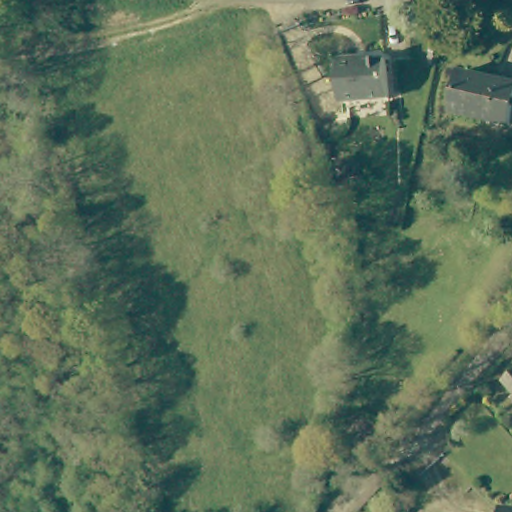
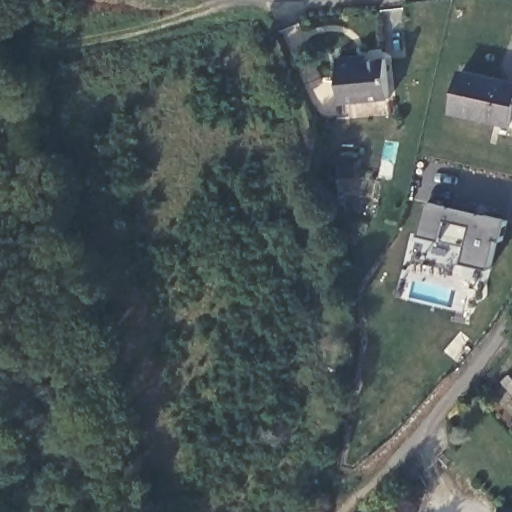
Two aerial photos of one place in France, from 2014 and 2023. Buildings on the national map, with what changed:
unchanged [(338,109),(333,64),(353,61),(355,66),(385,63),(389,102),(338,109)]
unchanged [(460,71),(512,83),(512,107),(509,123),(451,110),(460,71)]
new [(503,241),(497,239),(490,268),(462,262),(466,245),(417,235),(425,203),(506,221),(503,241)]
unchanged [(512,379),(512,392),(506,384),(512,379)]
unchanged [(512,512),(498,512),(498,510),(512,512)]

